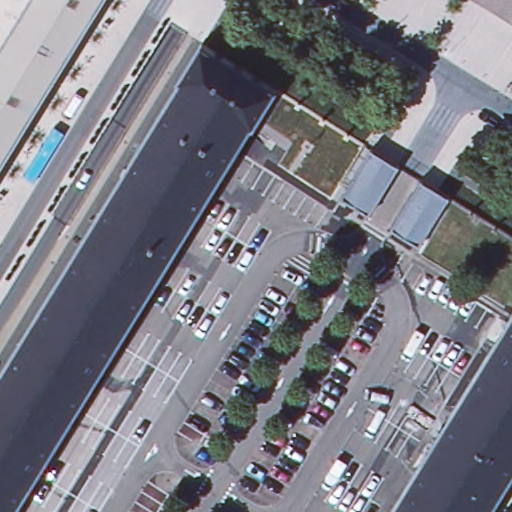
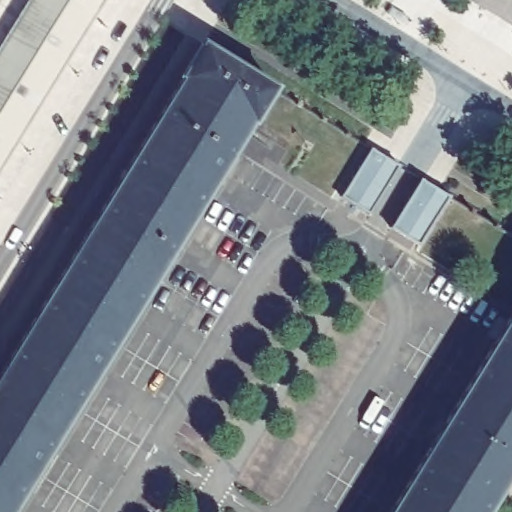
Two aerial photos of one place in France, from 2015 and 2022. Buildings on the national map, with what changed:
unchanged [(0,177),(0,60),(37,0),(108,0),(0,177)]
unchanged [(0,512),(0,381),(182,83),(182,80),(202,46),(275,91),(254,127),(114,351),(15,512),(0,512)]
unchanged [(401,169),(370,218),(362,213),(340,201),(372,151),(392,163),(401,169)]
unchanged [(450,200),(420,249),(399,235),(392,231),(422,182),(424,183),(425,184),(430,187),(450,200)]
unchanged [(485,512),(389,512),(512,311),(512,468),(485,512)]

